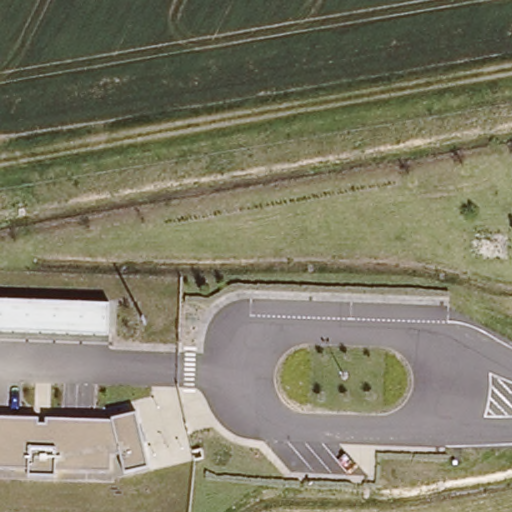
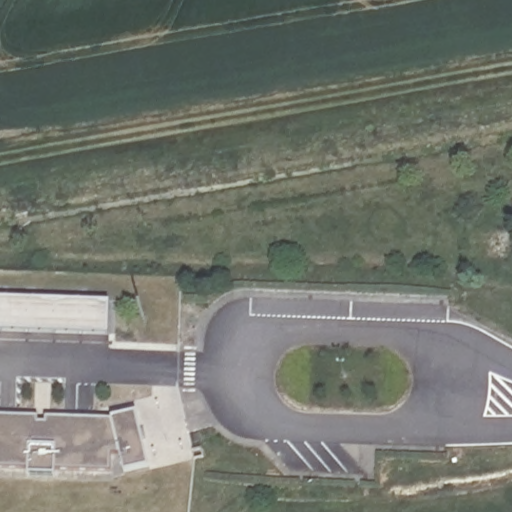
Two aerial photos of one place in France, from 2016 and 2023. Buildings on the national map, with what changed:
unchanged [(0,330),(0,297),(110,300),(108,333),(0,330)]
unchanged [(125,470),(120,452),(112,452),(113,472),(0,469),(0,418),(110,419),(137,410),(150,464),(125,470)]

